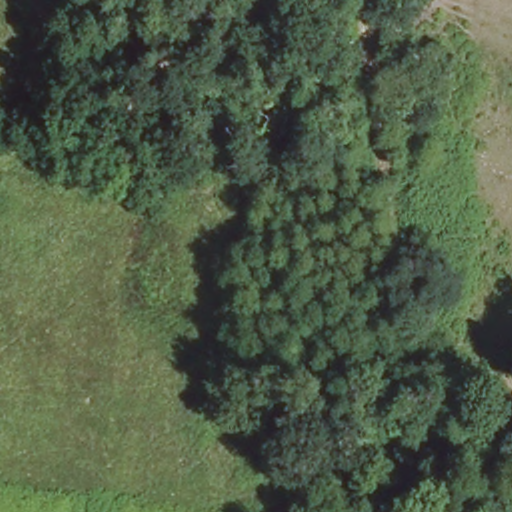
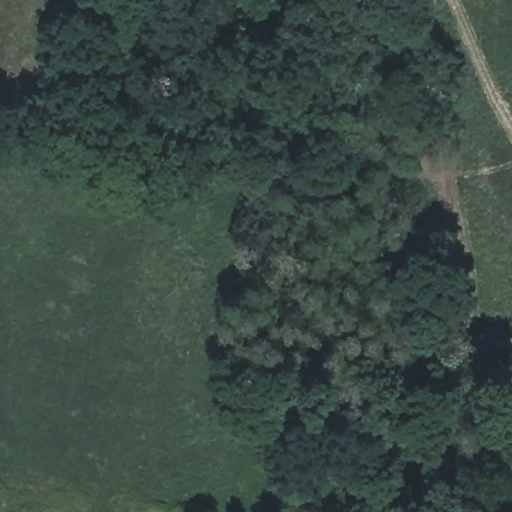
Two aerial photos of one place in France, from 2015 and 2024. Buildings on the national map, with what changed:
[]

